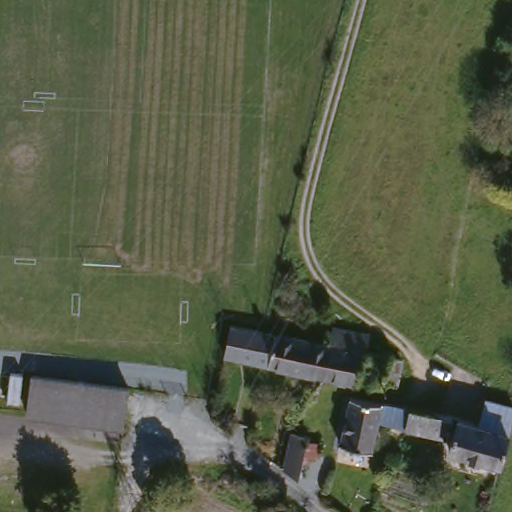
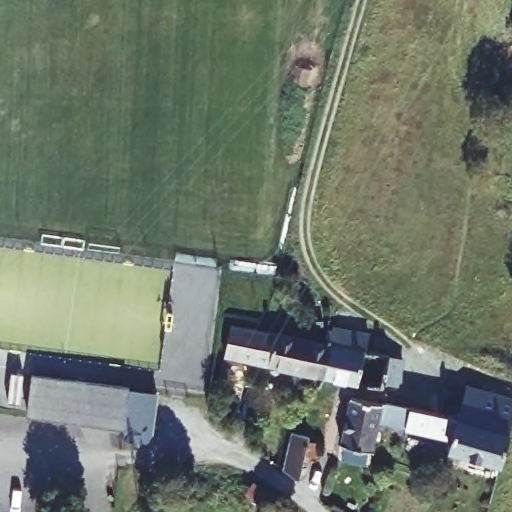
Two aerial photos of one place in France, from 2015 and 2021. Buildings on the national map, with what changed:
unchanged [(230,323),(266,331),(258,363),(223,356),(230,323)]
unchanged [(395,385),(383,382),(382,388),(323,376),(329,345),(330,340),(325,338),(326,330),(332,330),(332,328),(347,330),(368,334),(366,350),(383,353),(389,354),(388,356),(400,358),(395,385)]
unchanged [(274,333),(329,345),(323,376),(258,363),(266,331),(274,333)]
unchanged [(129,387),(125,424),(27,411),(31,375),(129,387)]
new [(157,391),(152,442),(124,439),(125,424),(129,387),(157,391)]
unchanged [(372,451),(341,445),(350,398),(379,404),(387,402),(408,406),(410,407),(452,415),(447,436),(407,427),(378,421),(372,451)]
unchanged [(512,406),(512,416),(500,463),(450,450),(457,418),(477,423),(484,400),(512,406)]
unchanged [(307,441),(319,443),(317,457),(304,455),(298,481),(283,470),(291,433),(309,435),(307,441)]

